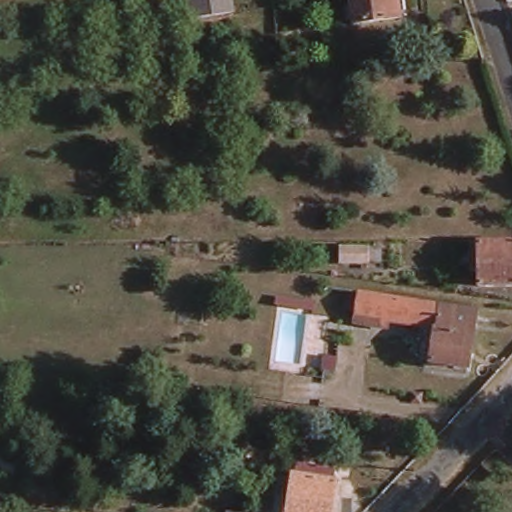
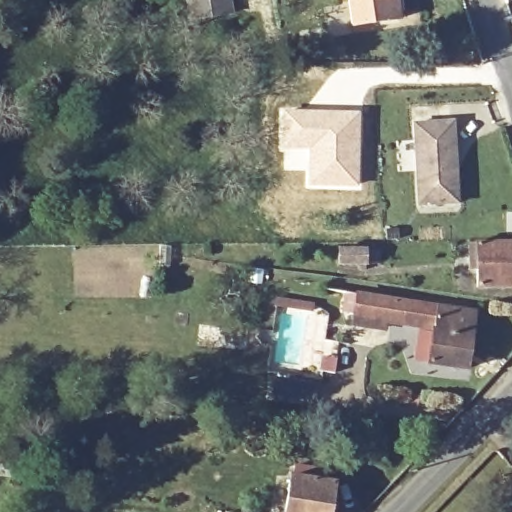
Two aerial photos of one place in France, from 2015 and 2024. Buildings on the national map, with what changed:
unchanged [(232,0),(235,15),(194,22),(191,6),(190,0),(232,0)]
unchanged [(349,0),(392,0),(395,16),(352,22),(349,0)]
new [(280,109),(361,111),(360,188),(305,187),(304,165),(302,165),(302,153),(279,152),(280,109)]
new [(457,204),(418,206),(414,125),(452,123),(455,162),(456,171),(457,204)]
unchanged [(477,287),(476,244),(512,244),(512,287),(477,287)]
unchanged [(362,267),(342,267),(342,252),(372,254),(370,275),(361,273),(362,267)]
unchanged [(348,313),(352,292),(397,300),(393,322),(392,330),(358,326),(359,315),(348,313)]
unchanged [(397,300),(478,310),(471,368),(434,364),(438,328),(393,322),(397,300)]
unchanged [(292,476),(333,484),(330,512),(286,512),(292,476)]

